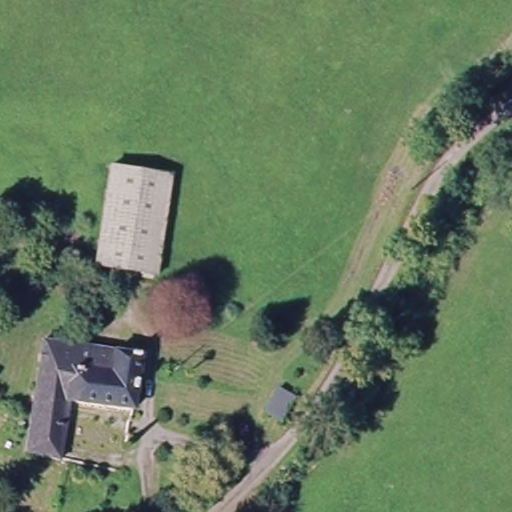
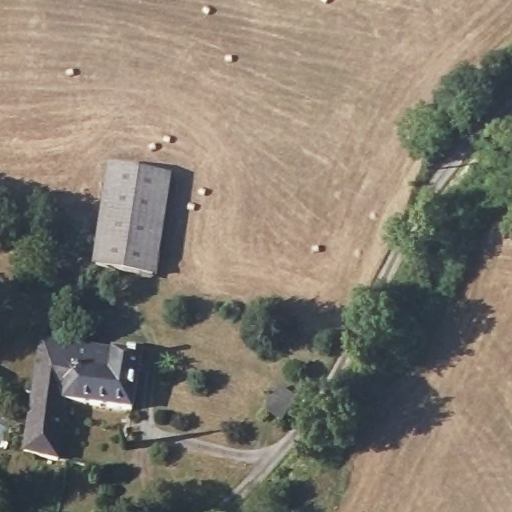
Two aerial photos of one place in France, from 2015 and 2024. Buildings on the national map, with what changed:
unchanged [(92,266),(111,167),(170,177),(149,278),(92,266)]
unchanged [(27,449),(35,405),(45,339),(50,340),(51,332),(58,333),(58,340),(77,343),(138,350),(139,342),(145,344),(145,352),(137,407),(73,397),(63,456),(27,449)]
unchanged [(252,416),(256,408),(268,385),(288,396),(276,417),(270,427),(252,416)]

